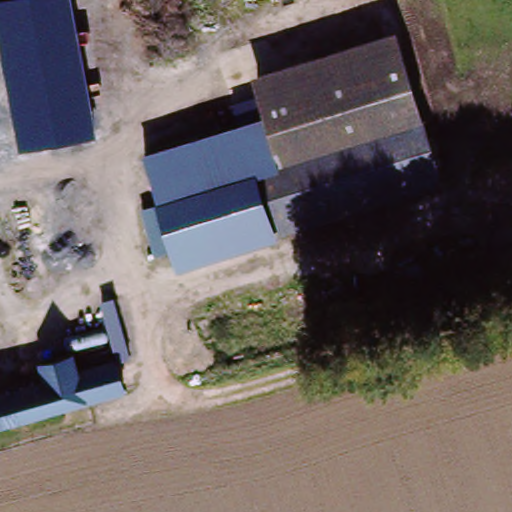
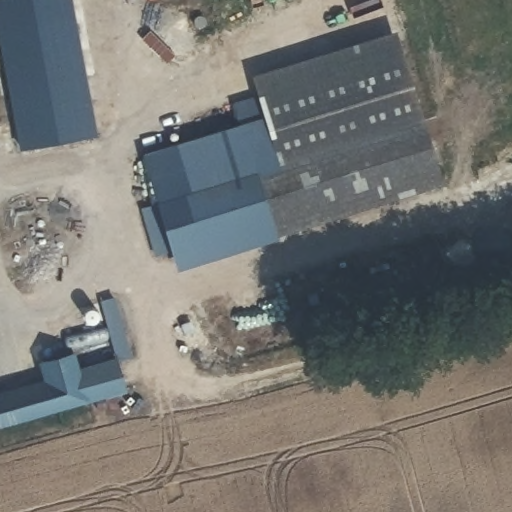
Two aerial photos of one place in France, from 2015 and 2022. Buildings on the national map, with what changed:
unchanged [(72,0),(97,136),(20,150),(0,41),(0,0),(72,0)]
unchanged [(288,183),(268,119),(255,77),(400,31),(433,137),(288,183)]
unchanged [(268,119),(288,183),(263,191),(169,221),(148,155),(268,119)]
unchanged [(433,137),(450,187),(280,242),(263,191),(288,183),(433,137)]
unchanged [(185,272),(170,223),(169,221),(263,191),(280,242),(185,272)]
unchanged [(162,201),(169,221),(170,223),(177,247),(156,256),(142,209),(162,201)]
unchanged [(43,379),(37,356),(70,346),(78,374),(86,401),(22,419),(0,425),(0,391),(43,379)]
unchanged [(78,374),(124,360),(132,388),(86,401),(78,374)]

